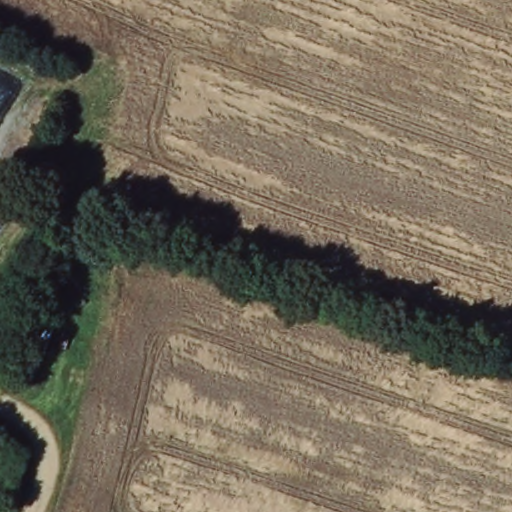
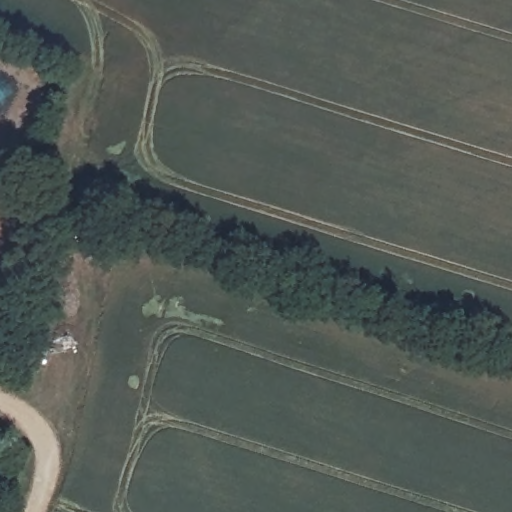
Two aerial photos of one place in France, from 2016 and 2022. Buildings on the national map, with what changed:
unchanged [(41,321),(61,329),(38,392),(15,385),(41,321)]

